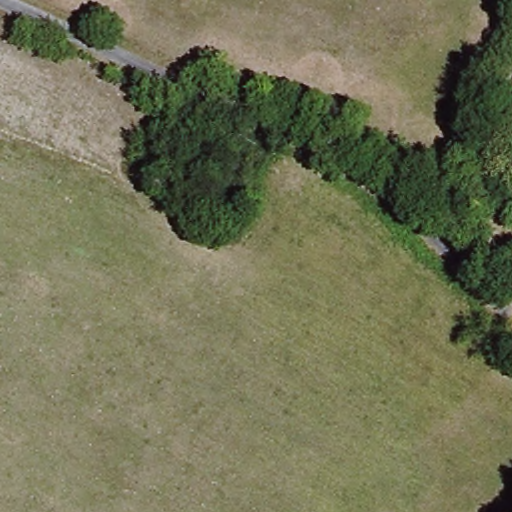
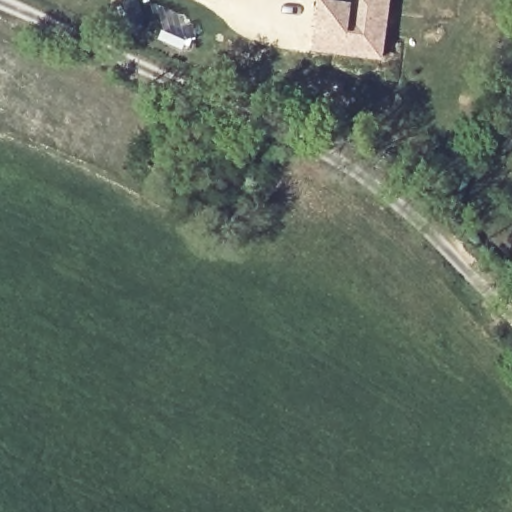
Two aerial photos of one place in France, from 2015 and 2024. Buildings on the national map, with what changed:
new [(317,0),(322,0),(346,3),(346,0),(389,0),(382,59),(312,49),(317,0)]
unchanged [(512,71),(512,87),(505,83),(512,71)]

